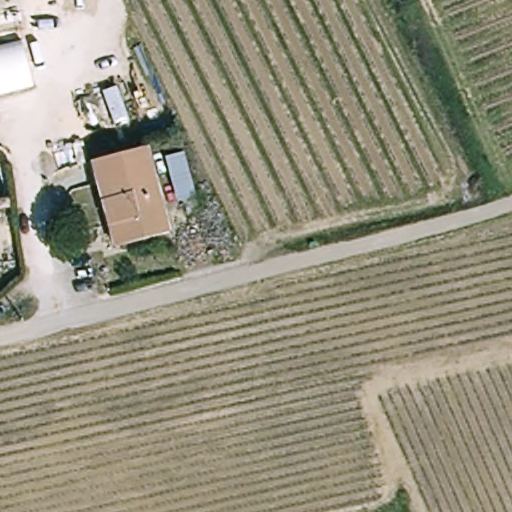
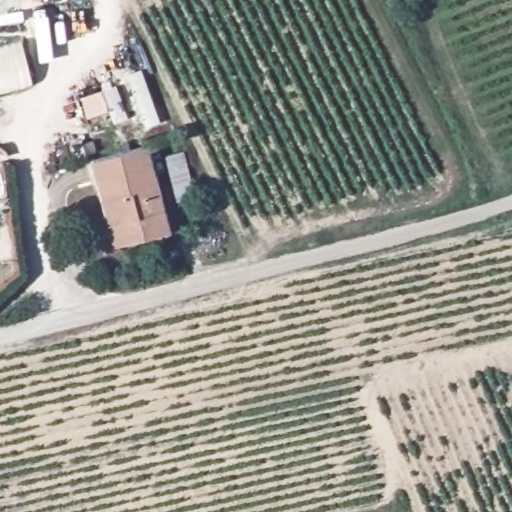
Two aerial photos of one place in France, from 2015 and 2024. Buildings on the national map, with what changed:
unchanged [(0,89),(0,44),(21,39),(32,81),(0,89)]
unchanged [(95,163),(150,148),(173,231),(118,247),(95,163)]

